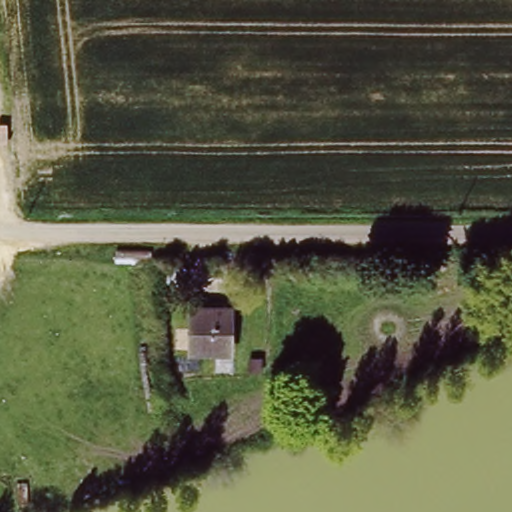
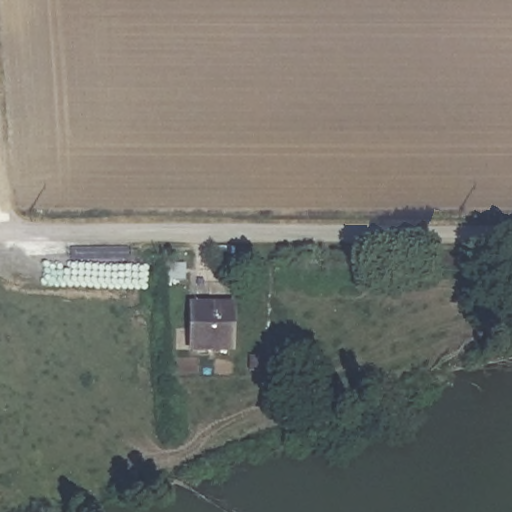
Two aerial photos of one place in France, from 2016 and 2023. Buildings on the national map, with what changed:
unchanged [(188,306),(235,303),(236,357),(188,357),(188,306)]

